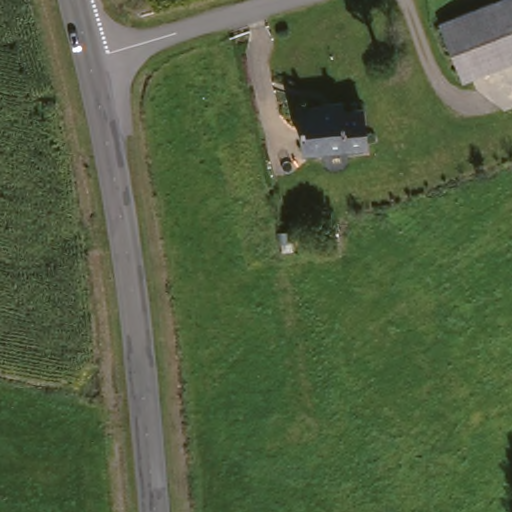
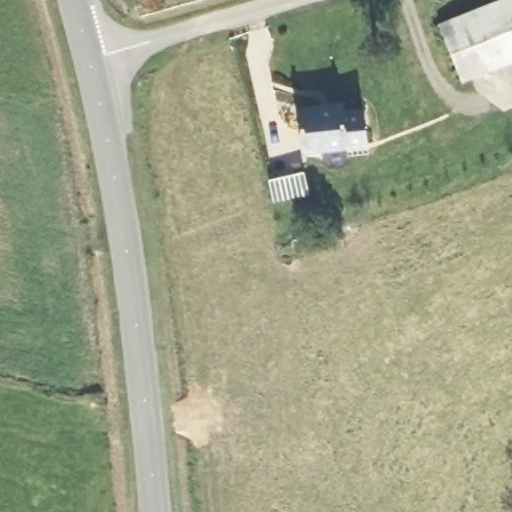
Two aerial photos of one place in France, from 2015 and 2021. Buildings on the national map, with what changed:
unchanged [(506,0),(512,0),(512,66),(460,89),(436,30),(506,0)]
unchanged [(328,149),(326,140),(313,144),(303,103),(320,98),(322,107),(364,97),(372,128),(353,133),(355,140),(349,149),(337,153),(332,147),(328,149)]

